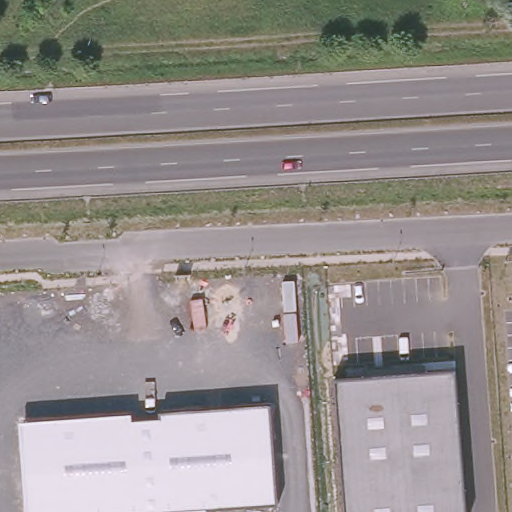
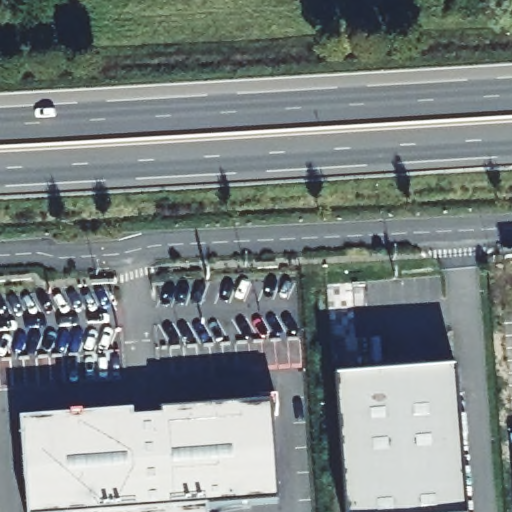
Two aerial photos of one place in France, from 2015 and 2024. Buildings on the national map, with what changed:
unchanged [(362,376),(361,365),(425,362),(426,371),(456,369),(466,512),(347,512),(337,378),(362,376)]
unchanged [(277,501),(208,506),(208,512),(25,512),(19,422),(133,413),(134,419),(163,416),(162,410),(269,403),(277,501)]

